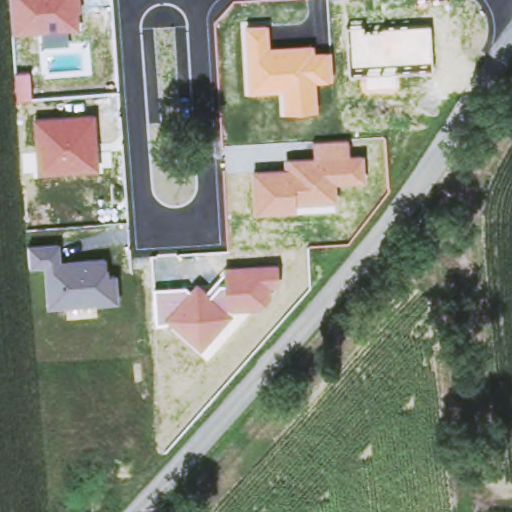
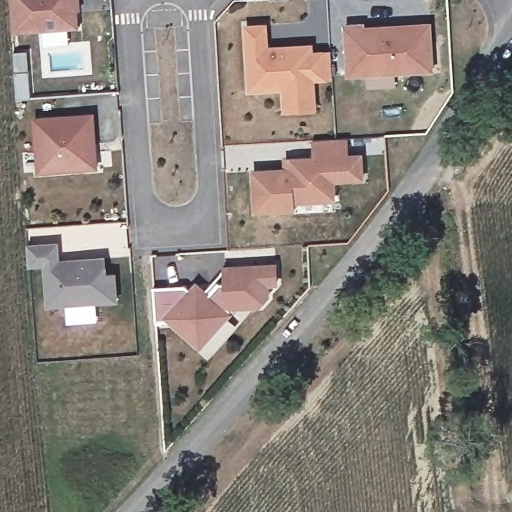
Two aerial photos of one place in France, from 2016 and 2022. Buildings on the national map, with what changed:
unchanged [(81,2),(77,2),(79,21),(71,30),(14,34),(11,0),(81,0),(81,2)]
new [(365,22),(365,26),(432,22),(435,72),(348,77),(345,22),(365,22)]
unchanged [(284,90),(248,92),(244,25),(268,24),(270,47),(313,44),(314,52),(330,51),(333,80),(316,81),(317,111),(285,114),(284,90)]
unchanged [(91,113),(95,166),(37,170),(33,117),(91,113)]
unchanged [(348,139),(348,155),(364,155),(365,181),(336,182),(336,202),(295,205),(295,213),(252,215),(250,171),(281,170),(280,159),(313,157),(312,142),(348,139)]
unchanged [(56,243),(58,261),(104,257),(105,275),(114,274),(116,300),(48,305),(45,263),(28,265),(27,246),(56,243)]
unchanged [(205,288),(222,270),(222,265),(279,262),(280,288),(270,288),(270,296),(258,310),(236,312),(201,350),(167,323),(154,323),(151,287),(187,285),(191,288),(196,282),(205,288)]

